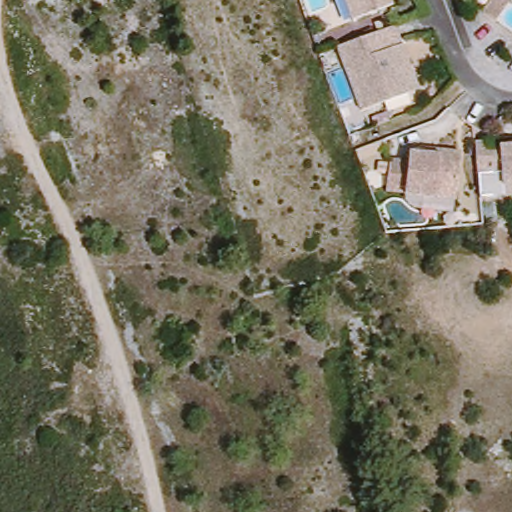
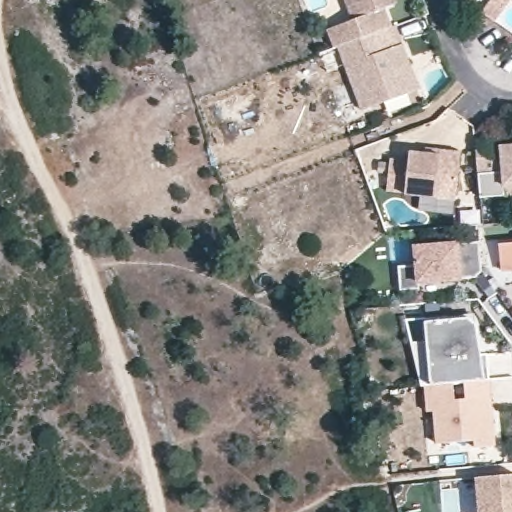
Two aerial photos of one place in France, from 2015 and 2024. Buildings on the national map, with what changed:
unchanged [(400,6),(358,22),(350,0),(398,0),(400,6)]
unchanged [(503,19),(490,11),(498,0),(512,0),(512,6),(503,19)]
unchanged [(410,97),(364,114),(339,50),(395,29),(412,71),(420,93),(410,97)]
unchanged [(506,192),(505,182),(504,169),(479,171),(476,140),(480,140),(500,137),(512,136),(512,192),(506,192)]
new [(359,161),(355,151),(385,140),(389,150),(359,161)]
unchanged [(417,194),(417,192),(398,193),(396,161),(415,160),(414,151),(429,150),(429,145),(443,144),(465,142),(467,190),(417,194)]
new [(482,274),(464,273),(464,280),(418,285),(399,290),(398,264),(414,258),(414,245),(458,242),(457,241),(480,240),(482,274)]
new [(502,271),(499,243),(512,242),(512,269),(502,271)]
new [(495,445),(475,447),(474,441),(435,442),(432,411),(425,411),(424,386),(420,386),(407,321),(424,321),(467,318),(475,325),(484,379),(495,445)]
new [(477,512),(474,478),(512,474),(512,512),(477,512)]

